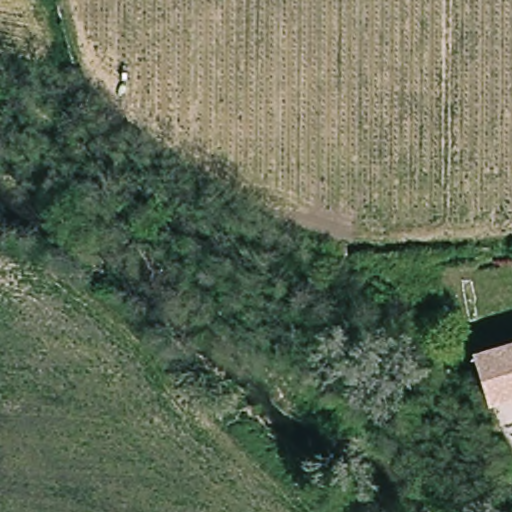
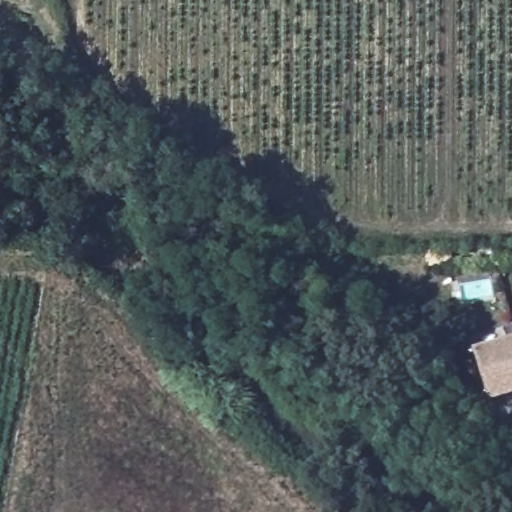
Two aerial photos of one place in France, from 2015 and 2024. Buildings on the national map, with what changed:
unchanged [(477,353),(481,352),(476,336),(512,325),(512,397),(493,403),(477,353)]

